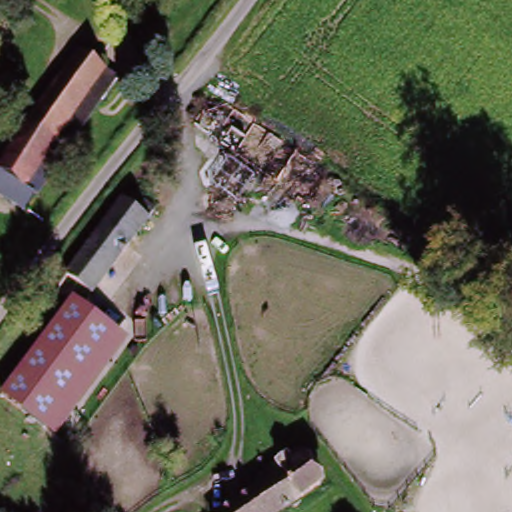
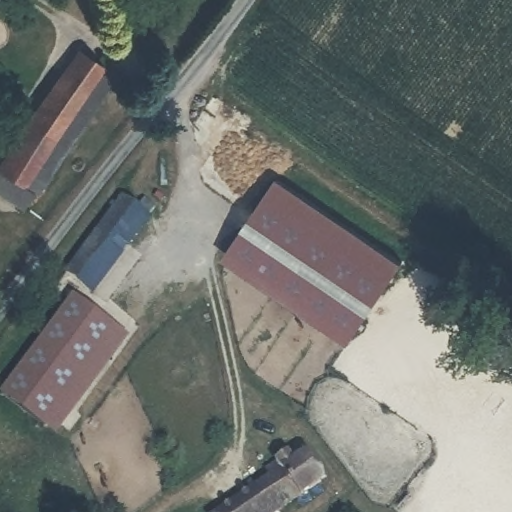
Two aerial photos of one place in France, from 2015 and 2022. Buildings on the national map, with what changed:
unchanged [(108,71),(90,93),(36,172),(9,151),(81,52),(108,71)]
demolished [(299,187),(283,178),(253,156),(191,112),(208,88),(317,163),(299,187)]
new [(399,267),(351,337),(226,252),(274,182),(399,267)]
unchanged [(148,218),(86,306),(61,288),(124,203),(148,218)]
unchanged [(78,299),(86,306),(131,335),(57,437),(0,396),(0,389),(68,293),(78,299)]
unchanged [(331,483),(283,512),(219,512),(276,478),(271,472),(306,447),(331,483)]

